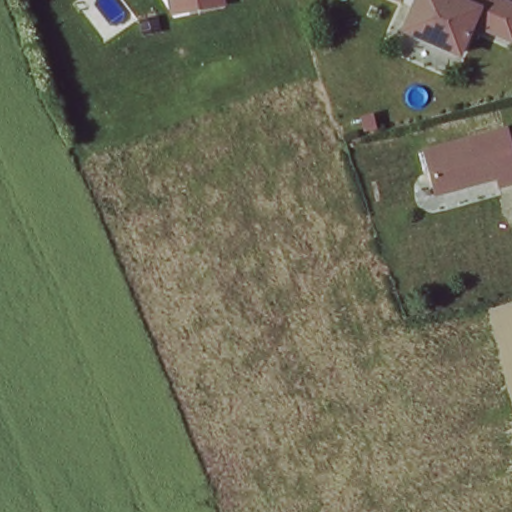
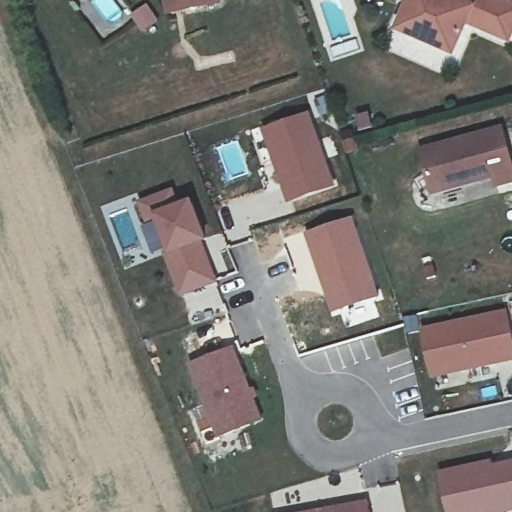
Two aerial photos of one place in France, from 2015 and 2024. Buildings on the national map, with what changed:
unchanged [(219,0),(220,1),(182,9),(171,10),(168,0),(219,0)]
unchanged [(391,0),(394,0),(394,1),(391,0)]
unchanged [(498,0),(512,6),(512,10),(500,37),(460,19),(447,50),(392,28),(403,0),(498,0)]
new [(310,111),(336,187),(289,205),(263,130),(310,111)]
unchanged [(423,155),(502,131),(512,167),(512,184),(497,188),(495,179),(464,187),(462,182),(441,190),(430,184),(423,155)]
new [(176,189),(182,205),(194,200),(210,241),(204,244),(221,284),(182,299),(164,255),(170,252),(156,219),(148,223),(140,204),(176,189)]
new [(355,216),(382,297),(331,313),(304,234),(355,216)]
new [(508,310),(512,326),(512,361),(432,380),(422,329),(508,310)]
new [(235,346),(252,389),(256,387),(261,398),(256,400),(264,421),(219,440),(190,365),(235,346)]
new [(492,459),(494,465),(512,460),(512,511),(509,512),(448,512),(439,471),(492,459)]
new [(370,500),(372,512),(306,512),(370,500)]

